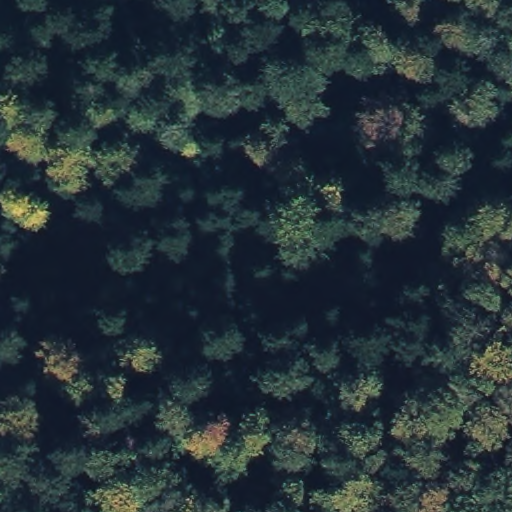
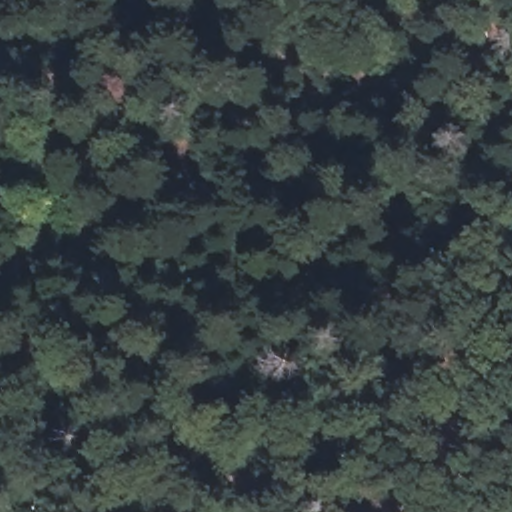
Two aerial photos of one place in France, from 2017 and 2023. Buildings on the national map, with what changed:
[]

